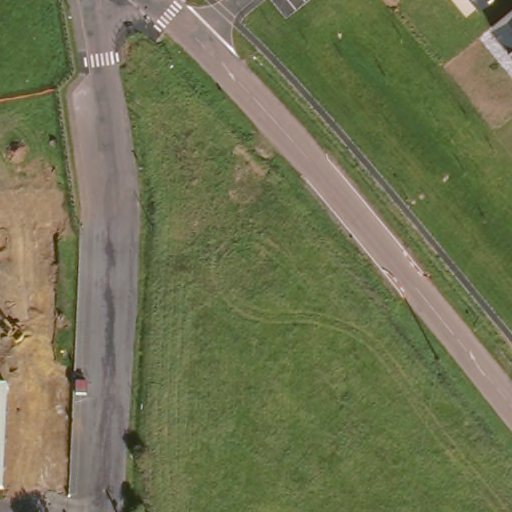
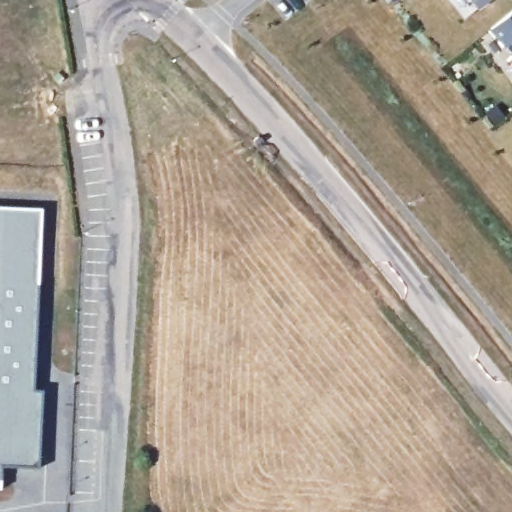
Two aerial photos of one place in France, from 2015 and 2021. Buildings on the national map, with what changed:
unchanged [(471,0),(489,0),(478,8),(471,0)]
unchanged [(489,28),(512,11),(512,56),(489,28)]
new [(32,390),(42,390),(39,468),(0,464),(0,476),(0,207),(41,210),(32,390)]
demolished [(0,476),(0,388),(4,388),(0,476)]

